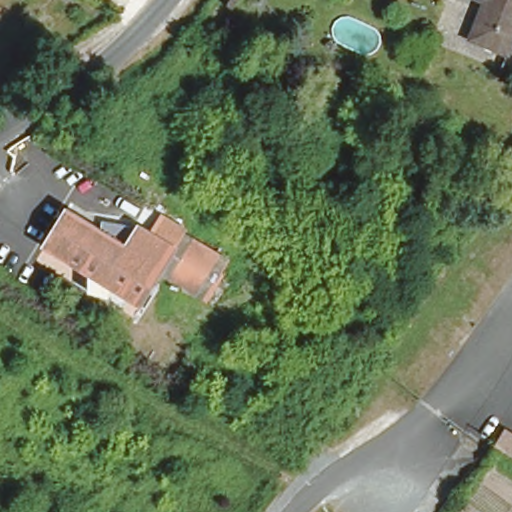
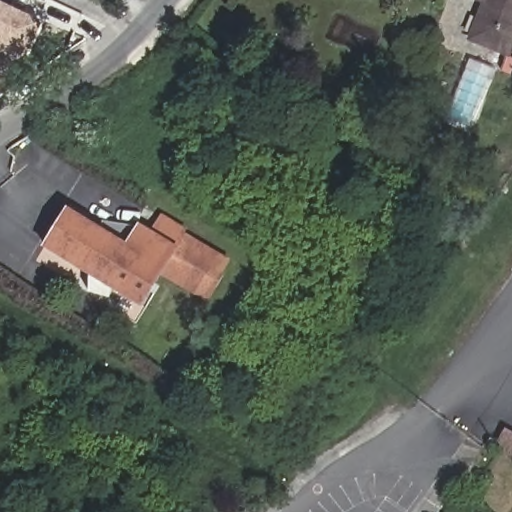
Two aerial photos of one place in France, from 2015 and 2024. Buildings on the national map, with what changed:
unchanged [(498,54),(462,39),(477,5),(466,0),(512,0),(512,21),(498,54)]
new [(29,51),(19,57),(0,47),(0,1),(44,21),(29,51)]
unchanged [(99,223),(110,207),(175,248),(141,300),(48,240),(71,207),(99,223)]
unchanged [(207,261),(191,287),(171,275),(187,249),(207,261)]
unchanged [(510,435),(512,436),(512,459),(499,451),(510,435)]

